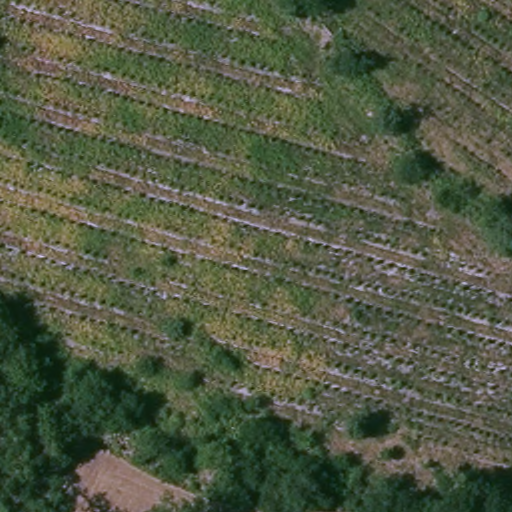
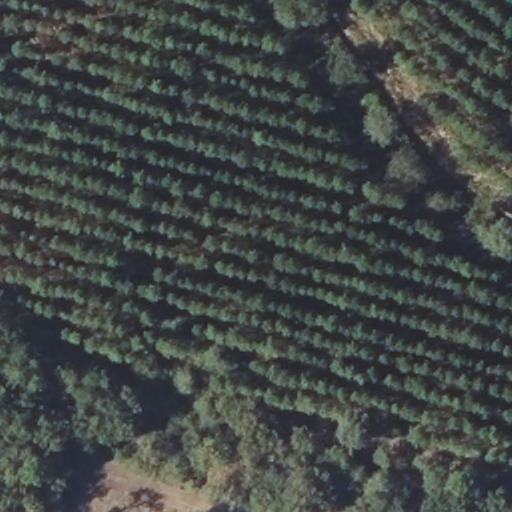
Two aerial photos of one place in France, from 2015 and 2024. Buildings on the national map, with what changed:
[]

